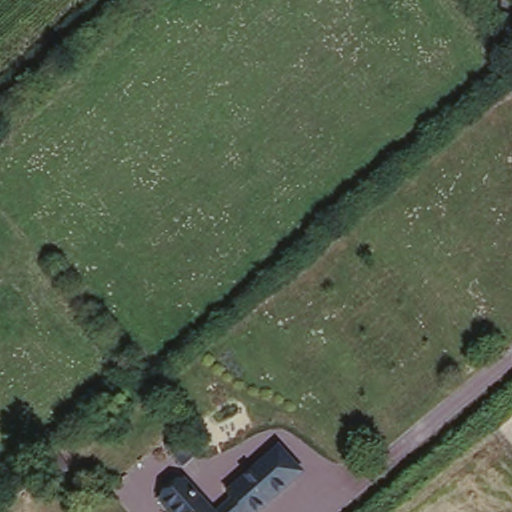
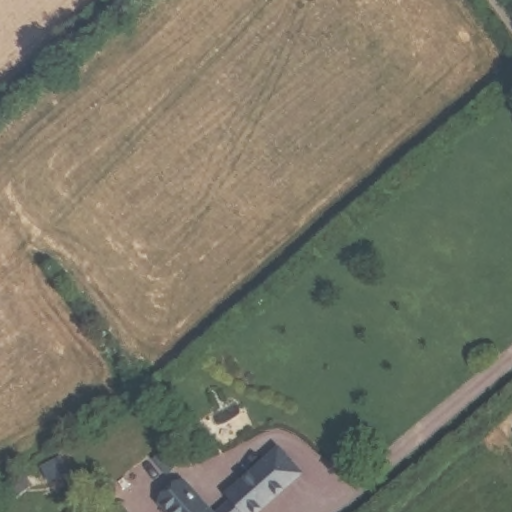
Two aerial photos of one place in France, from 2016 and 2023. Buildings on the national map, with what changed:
unchanged [(185,474),(214,507),(227,497),(223,493),(280,445),(309,476),(264,512),(167,512),(155,498),(185,474)]

